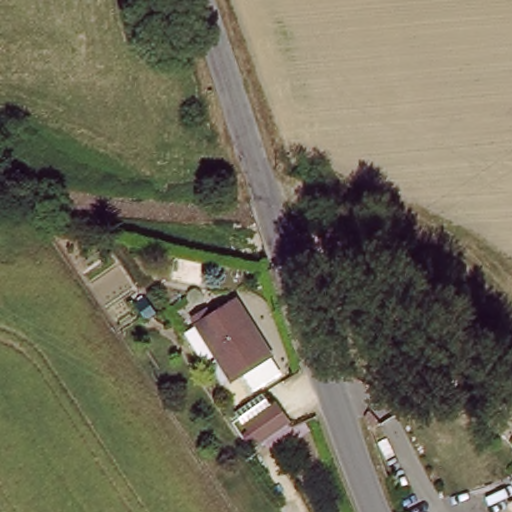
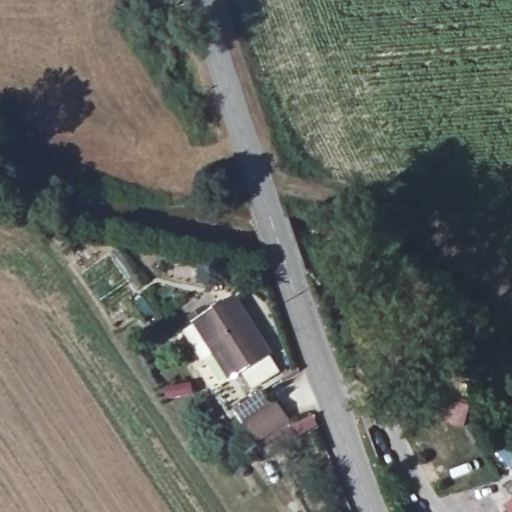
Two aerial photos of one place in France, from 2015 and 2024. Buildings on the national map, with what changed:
unchanged [(230,309),(259,346),(228,372),(199,336),(230,309)]
unchanged [(239,420),(275,394),(289,421),(254,451),(239,420)]

